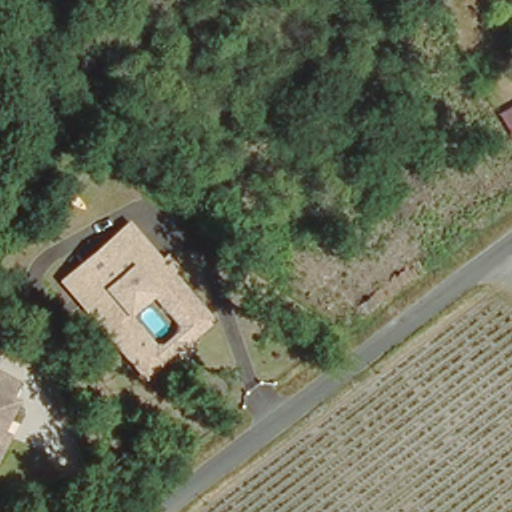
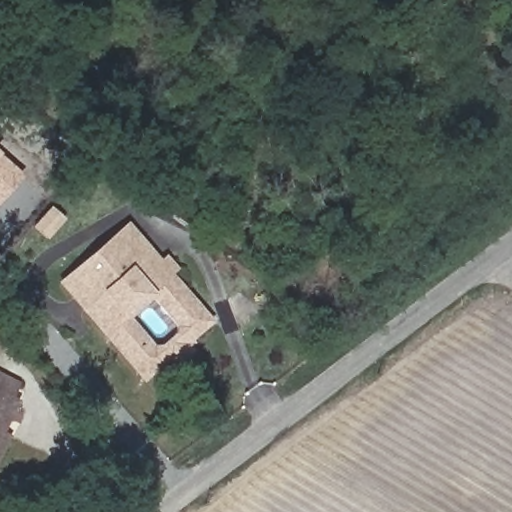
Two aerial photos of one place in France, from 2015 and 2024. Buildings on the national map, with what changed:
unchanged [(490,122),(512,110),(512,134),(501,140),(491,122),(490,122)]
new [(23,176),(0,203),(0,157),(23,176)]
unchanged [(163,361),(161,358),(139,376),(60,278),(127,224),(158,263),(165,257),(174,269),(167,274),(206,322),(184,340),(187,342),(181,347),(185,351),(173,361),(169,357),(163,361)]
unchanged [(18,386),(11,398),(16,402),(1,430),(0,433),(0,375),(18,386)]
unchanged [(5,444),(0,453),(0,441),(5,444)]

